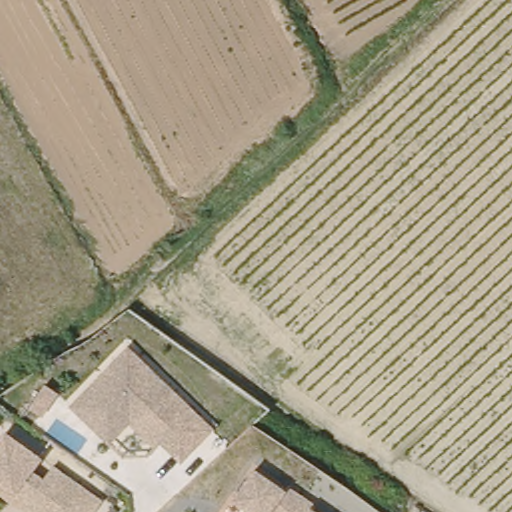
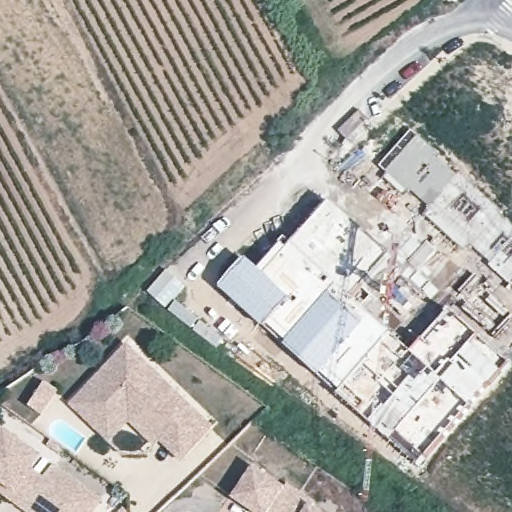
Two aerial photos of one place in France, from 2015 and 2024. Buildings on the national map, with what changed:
new [(378,166),(412,130),(512,221),(512,287),(378,166)]
new [(390,255),(353,297),(410,351),(449,307),(510,363),(418,467),(220,288),(247,258),(265,276),(332,202),(390,255)]
unchanged [(184,464),(133,424),(109,442),(72,406),(127,346),(212,430),(184,464)]
unchanged [(93,512),(25,512),(5,497),(0,501),(0,436),(3,431),(45,457),(38,471),(48,477),(57,463),(101,500),(93,512)]
unchanged [(233,500),(255,467),(286,490),(291,483),(311,501),(308,507),(316,512),(247,512),(233,500)]

